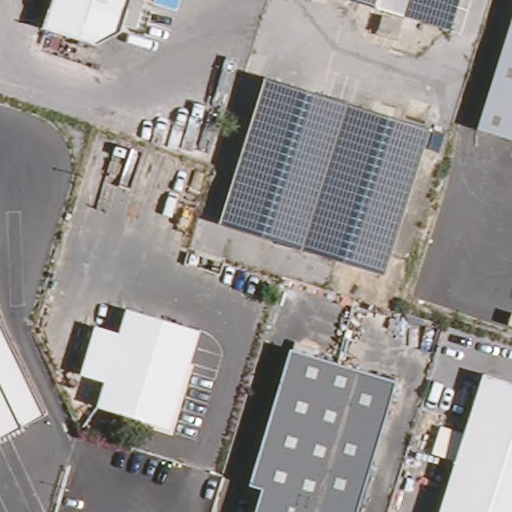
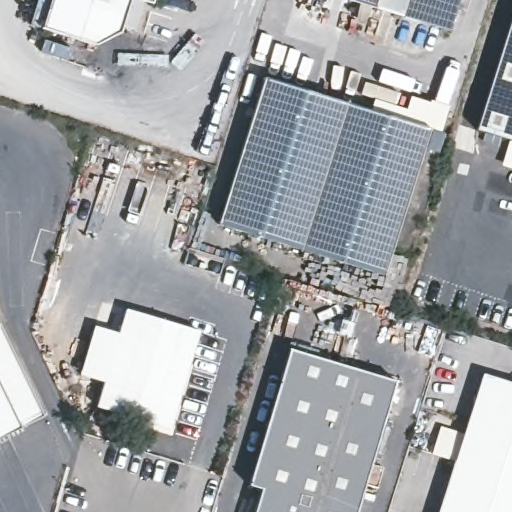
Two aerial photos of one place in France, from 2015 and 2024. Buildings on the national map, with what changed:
unchanged [(124,31),(101,46),(48,30),(57,0),(134,0),(124,31)]
unchanged [(157,4),(143,0),(158,0),(157,4)]
unchanged [(451,31),(396,14),(364,3),(354,0),(460,0),(451,31)]
unchanged [(396,14),(386,48),(354,37),(364,3),(396,14)]
unchanged [(512,33),(512,134),(483,125),(512,33)]
unchanged [(425,126),(381,273),(221,223),(266,76),(425,126)]
unchanged [(96,410),(102,387),(75,378),(89,328),(115,334),(122,310),(200,332),(168,431),(96,410)]
unchanged [(39,416),(0,436),(0,333),(39,416)]
unchanged [(245,490),(287,350),(395,381),(359,512),(249,512),(255,492),(245,490)]
unchanged [(512,385),(512,512),(438,512),(480,375),(512,385)]

